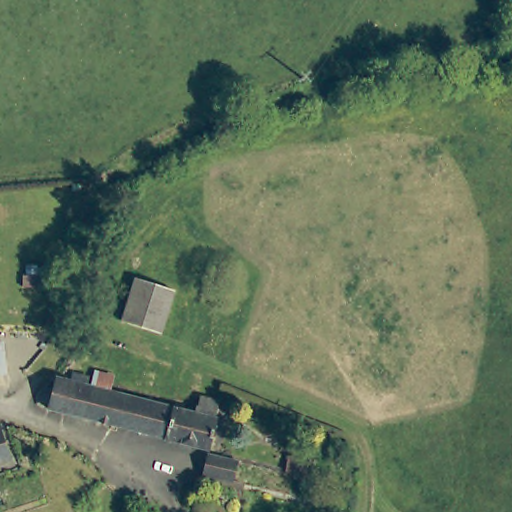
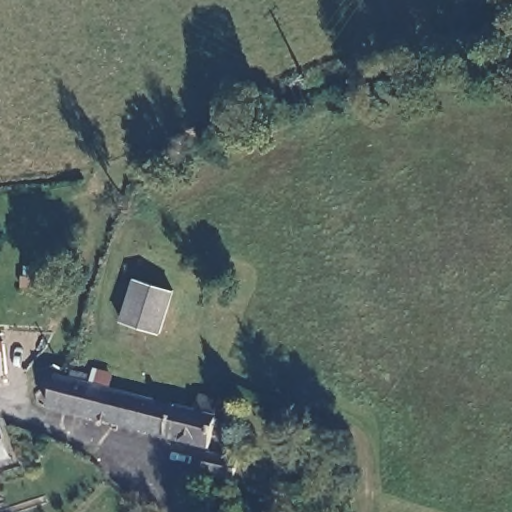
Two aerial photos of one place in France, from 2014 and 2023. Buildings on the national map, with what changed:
unchanged [(21,274),(41,274),(40,287),(21,287),(21,274)]
unchanged [(136,277),(174,290),(161,332),(123,320),(136,277)]
unchanged [(50,285),(57,286),(55,296),(48,294),(50,285)]
unchanged [(4,336),(5,340),(5,346),(6,356),(8,375),(9,386),(0,388),(0,337),(4,336)]
unchanged [(209,449),(166,438),(49,408),(57,377),(71,381),(73,372),(89,376),(86,385),(92,386),(96,371),(111,375),(107,390),(196,413),(200,396),(219,400),(214,417),(216,418),(209,449)]
unchanged [(11,458),(0,461),(0,427),(11,458)]
unchanged [(208,454),(239,460),(235,480),(203,473),(208,454)]
unchanged [(288,455),(308,458),(307,473),(286,470),(288,455)]

